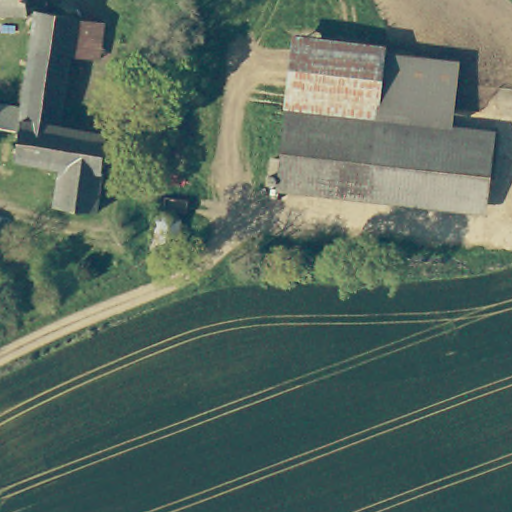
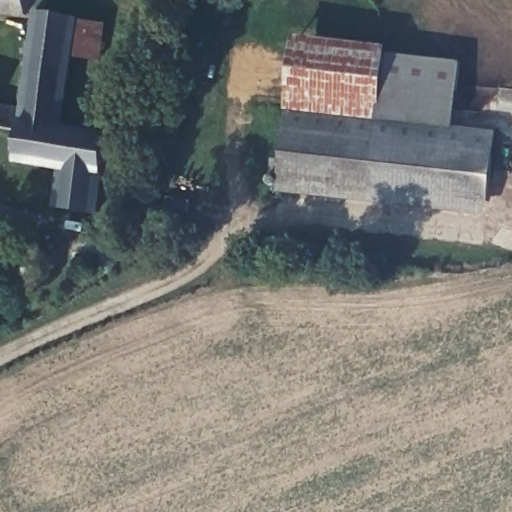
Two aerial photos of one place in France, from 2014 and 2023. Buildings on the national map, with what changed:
unchanged [(22,113),(36,10),(27,9),(26,16),(0,15),(0,0),(46,0),(46,11),(80,16),(74,58),(63,130),(106,134),(97,214),(57,209),(61,170),(15,163),(19,132),(0,130),(0,110),(22,113)]
unchanged [(80,16),(109,21),(102,62),(74,58),(80,16)]
unchanged [(276,186),(287,48),(380,57),(366,194),(276,186)]
unchanged [(399,59),(393,125),(453,131),(493,134),(487,205),(366,194),(380,57),(399,59)]
unchanged [(459,64),(453,131),(393,125),(399,59),(459,64)]

